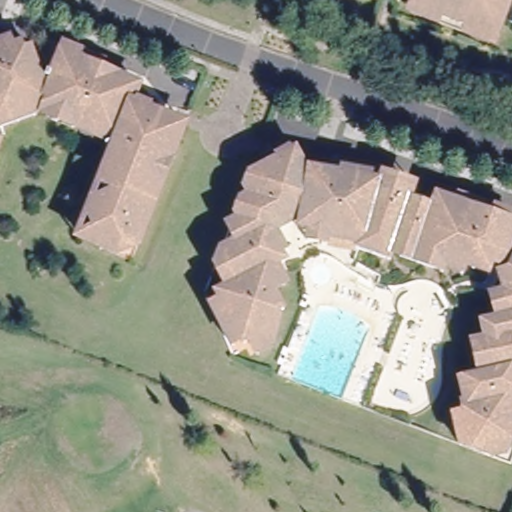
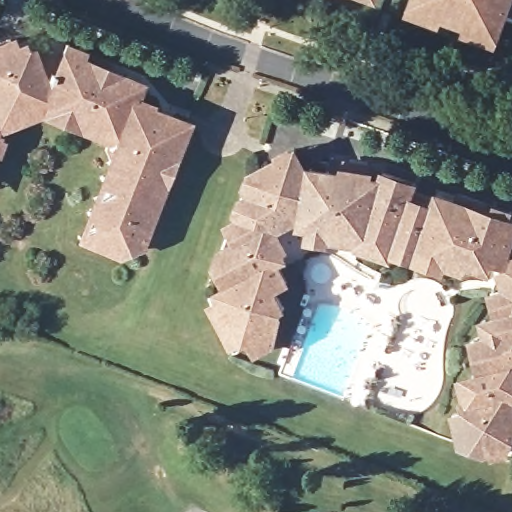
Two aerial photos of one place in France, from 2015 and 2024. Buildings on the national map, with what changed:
unchanged [(370,0),(373,0),(373,1),(370,0)]
unchanged [(415,2),(416,0),(512,0),(499,33),(415,2)]
unchanged [(107,253),(100,232),(112,227),(101,201),(125,191),(115,166),(130,159),(122,138),(112,133),(110,136),(94,129),(94,124),(50,106),(1,122),(2,126),(0,127),(0,69),(37,57),(37,63),(61,74),(66,67),(123,91),(126,85),(142,92),(136,106),(158,116),(169,143),(155,149),(164,173),(141,184),(151,210),(139,215),(148,235),(144,245),(116,257),(107,253)]
unchanged [(295,147),(303,150),(309,162),(291,173),(299,188),(289,194),(297,210),(276,222),(293,254),(267,268),(290,314),(282,340),(265,349),(258,336),(252,338),(225,288),(247,276),(231,244),(251,232),(244,216),(254,209),(246,194),(263,185),(254,171),(255,168),(295,147)]
unchanged [(343,170),(342,173),(387,182),(465,209),(468,203),(494,212),(496,206),(512,212),(512,250),(509,258),(483,250),(481,255),(455,247),(452,253),(399,235),(397,241),(363,230),(364,227),(304,214),(315,165),(343,170)]
unchanged [(509,283),(512,282),(512,294),(509,283)]
unchanged [(471,401),(484,397),(478,374),(500,368),(492,334),(506,330),(501,314),(512,310),(512,447),(499,450),(496,451),(483,447),(482,443),(471,401)]

